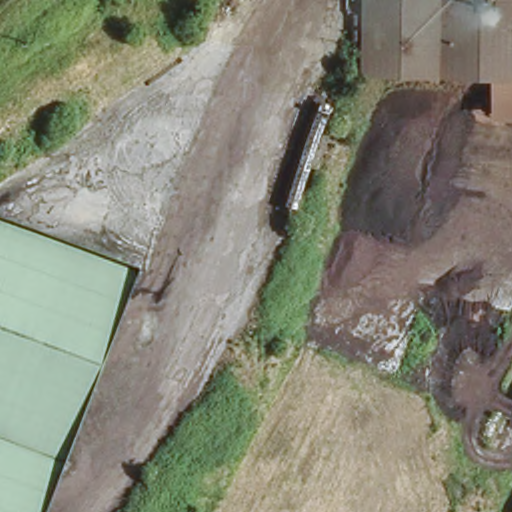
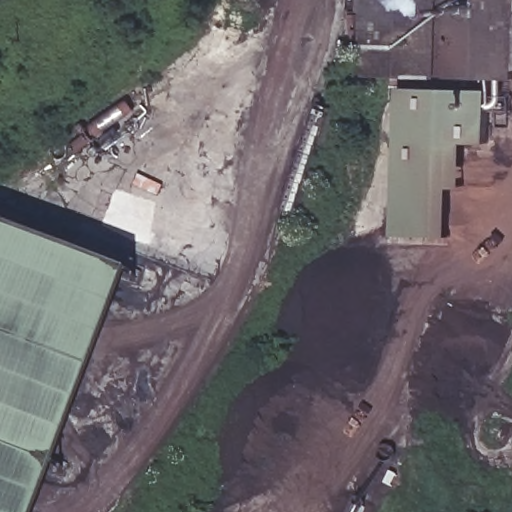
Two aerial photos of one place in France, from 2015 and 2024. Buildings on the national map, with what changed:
unchanged [(355,0),(429,0),(425,71),(351,65),(355,0)]
unchanged [(512,0),(512,65),(511,77),(425,71),(429,0),(512,0)]
new [(489,145),(451,144),(450,198),(442,197),(441,236),(395,235),(399,87),(490,90),(489,145)]
unchanged [(42,512),(0,512),(0,225),(134,277),(42,512)]

